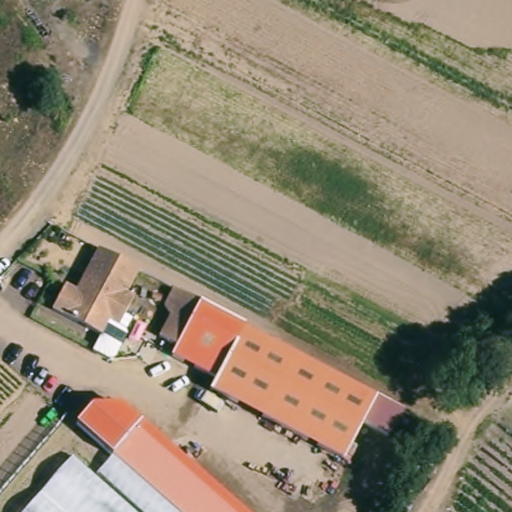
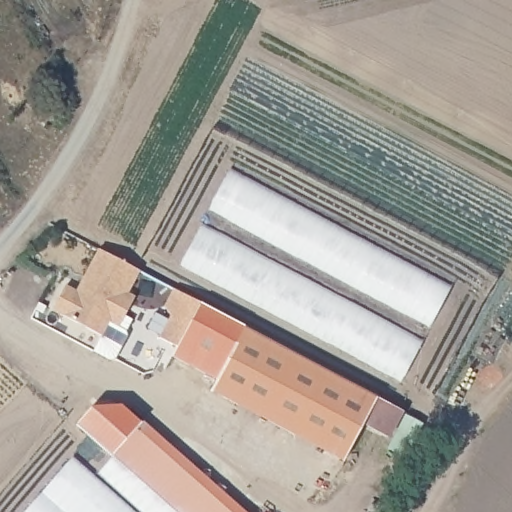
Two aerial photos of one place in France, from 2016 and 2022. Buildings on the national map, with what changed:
new [(229,170),(451,287),(400,380),(180,264),(229,170)]
unchanged [(127,328),(129,332),(116,356),(111,357),(93,347),(101,332),(52,306),(65,282),(77,289),(81,281),(100,248),(139,269),(127,291),(135,295),(125,314),(120,324),(127,328)]
unchanged [(221,383),(177,360),(181,351),(164,341),(175,320),(170,310),(179,292),(250,330),(221,383)]
unchanged [(221,383),(250,330),(278,346),(409,417),(395,443),(367,428),(346,465),(216,392),(221,383)]
unchanged [(80,425),(94,410),(122,406),(141,425),(115,453),(111,456),(80,425)]
unchanged [(141,425),(146,425),(245,512),(180,512),(115,453),(141,425)]
unchanged [(180,512),(28,512),(75,456),(97,476),(111,456),(115,453),(180,512)]

